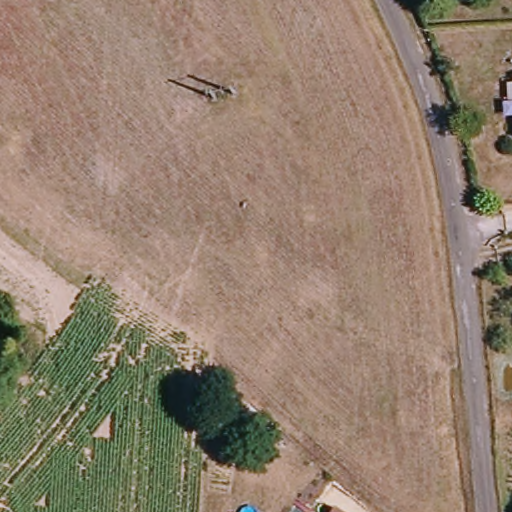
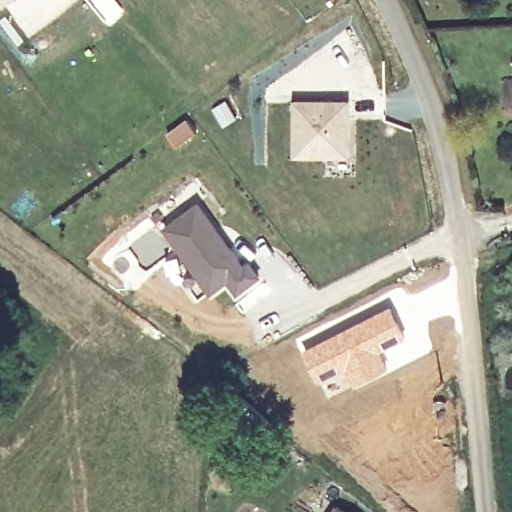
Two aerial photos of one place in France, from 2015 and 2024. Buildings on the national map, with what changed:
new [(6,4),(3,0),(12,0),(6,4)]
new [(348,102),(348,156),(294,156),(294,102),(348,102)]
new [(214,228),(218,235),(242,267),(248,262),(258,276),(236,292),(227,279),(210,292),(163,229),(195,205),(214,228)]
new [(390,306),(403,337),(385,346),(386,349),(382,351),(390,368),(353,387),(344,372),(321,383),(304,348),(390,306)]
unchanged [(345,512),(332,512),(335,506),(345,512)]

